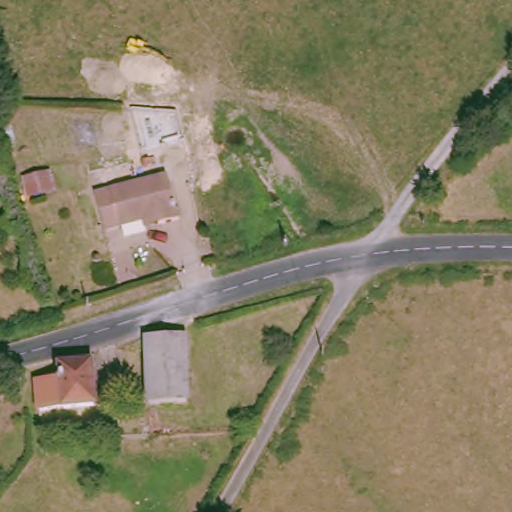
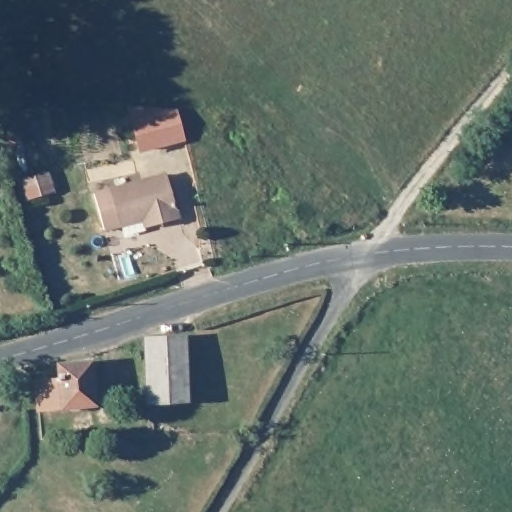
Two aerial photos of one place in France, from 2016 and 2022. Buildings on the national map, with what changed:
new [(186,140),(141,151),(129,106),(178,109),(186,140)]
unchanged [(45,158),(52,178),(35,185),(26,166),(45,158)]
unchanged [(138,225),(106,232),(97,196),(167,179),(179,222),(161,228),(142,234),(138,225)]
unchanged [(188,406),(159,407),(148,406),(146,340),(186,340),(188,406)]
unchanged [(99,370),(98,411),(41,410),(40,376),(65,377),(65,368),(99,370)]

